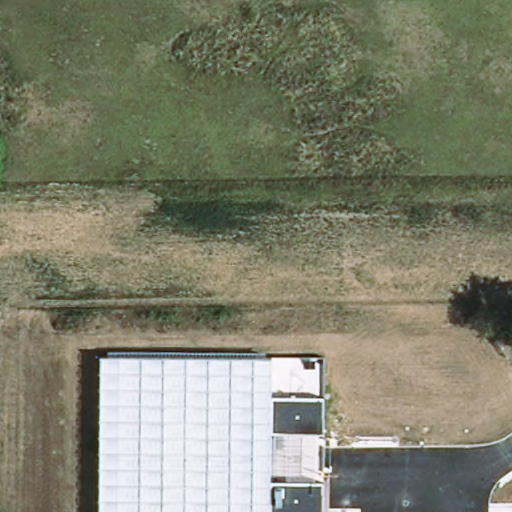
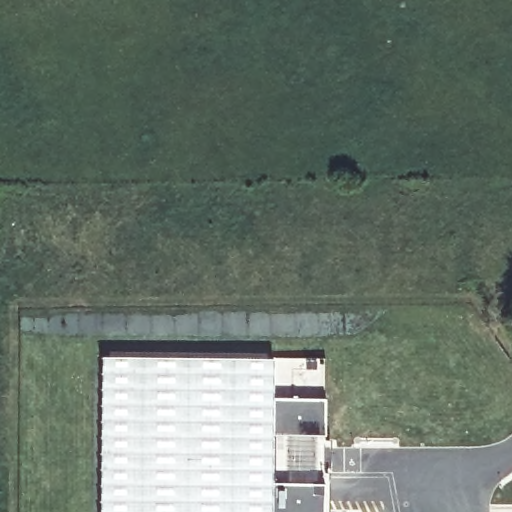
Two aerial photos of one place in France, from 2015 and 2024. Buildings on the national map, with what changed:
unchanged [(323,355),(323,512),(100,512),(102,354),(323,355)]

